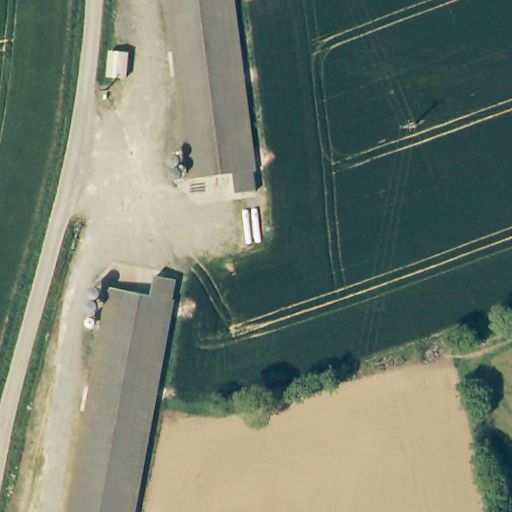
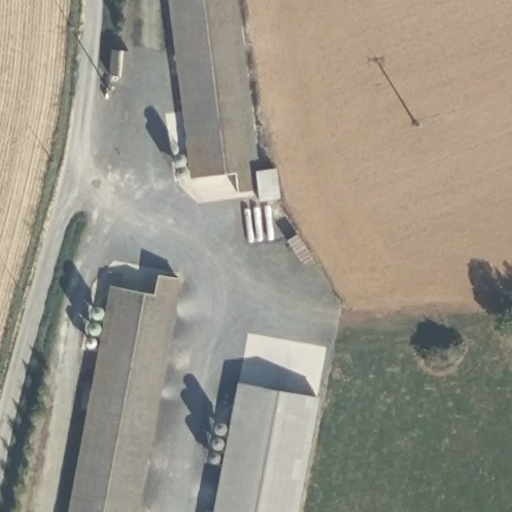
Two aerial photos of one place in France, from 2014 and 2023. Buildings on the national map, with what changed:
unchanged [(233,187),(231,172),(191,176),(168,0),(229,0),(254,184),(233,187)]
unchanged [(154,273),(174,277),(129,512),(69,512),(111,285),(150,293),(154,273)]
new [(318,396),(296,512),(212,512),(237,383),(318,396)]

